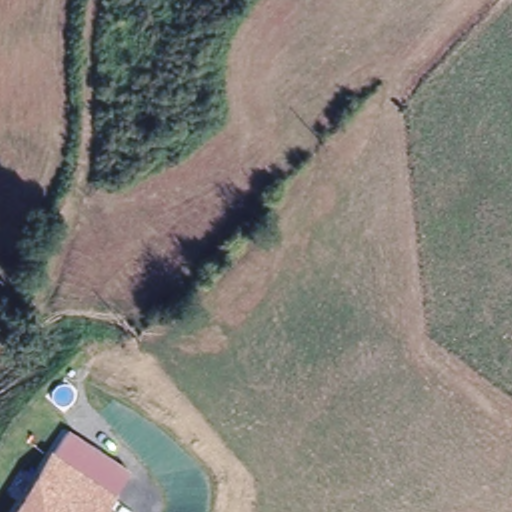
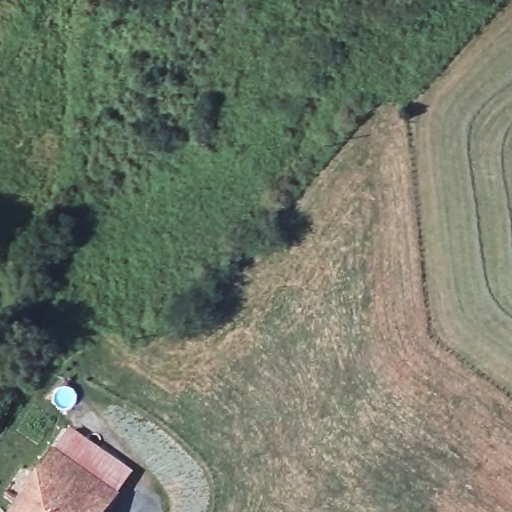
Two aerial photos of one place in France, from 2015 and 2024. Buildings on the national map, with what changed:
unchanged [(21,506),(49,464),(57,450),(121,486),(113,499),(105,512),(18,512),(21,506)]

